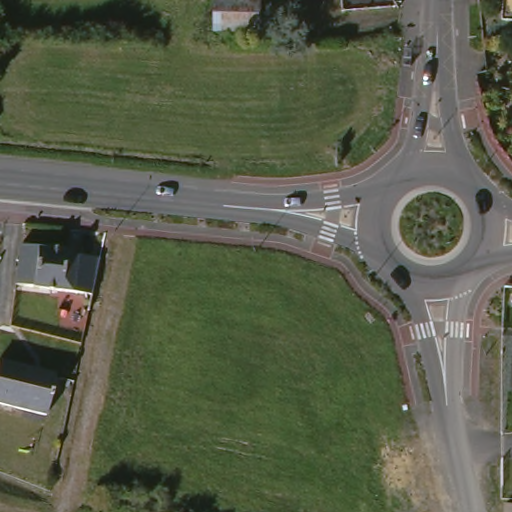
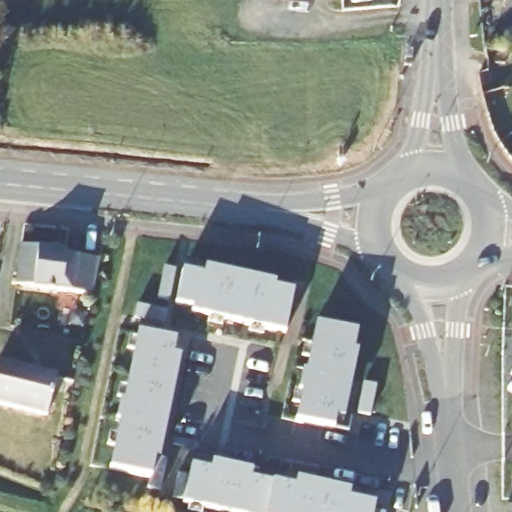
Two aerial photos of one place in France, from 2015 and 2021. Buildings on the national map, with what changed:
unchanged [(292,3),(291,0),(332,0),(292,3)]
unchanged [(218,7),(258,7),(259,32),(219,32),(218,7)]
unchanged [(19,246),(64,252),(64,256),(83,258),(79,294),(59,292),(14,286),(19,246)]
new [(184,262),(275,281),(274,288),(293,292),(285,330),(192,310),(193,306),(175,302),(182,269),(184,262)]
demolished [(512,293),(512,346),(502,346),(504,326),(502,326),(504,292),(512,293)]
new [(341,418),(352,420),(350,434),(334,431),(296,423),(302,394),(299,393),(303,373),(306,374),(316,326),(354,333),(350,352),(354,353),(341,418)]
new [(115,418),(120,398),(123,398),(138,330),(175,338),(176,334),(184,336),(159,457),(165,458),(159,488),(146,486),(149,476),(109,467),(119,420),(115,418)]
unchanged [(46,415),(0,405),(0,363),(55,376),(46,415)]
new [(187,455),(368,497),(366,504),(190,464),(185,463),(187,455)]
new [(188,475),(190,464),(366,504),(374,506),(372,512),(226,512),(182,502),(183,498),(172,496),(177,472),(188,475)]

